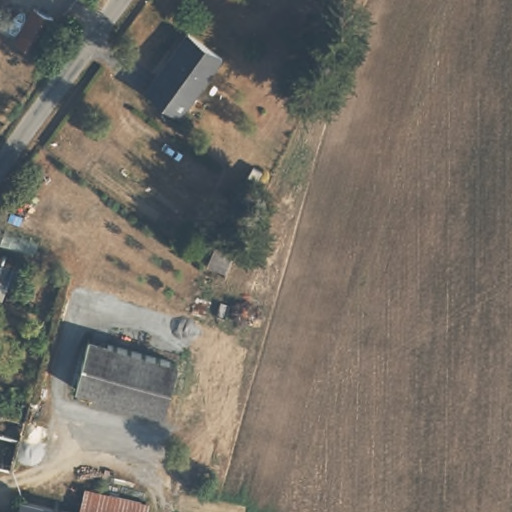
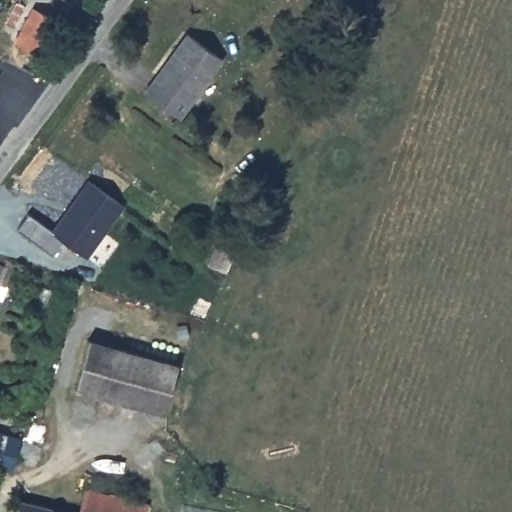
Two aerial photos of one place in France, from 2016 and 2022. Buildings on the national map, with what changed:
unchanged [(31,4),(60,14),(40,54),(13,39),(31,4)]
unchanged [(218,56),(176,115),(143,91),(186,31),(218,56)]
new [(26,213),(51,230),(88,179),(122,204),(85,255),(62,239),(52,255),(16,229),(26,213)]
unchanged [(206,253),(215,235),(236,246),(227,264),(206,253)]
unchanged [(91,338),(180,362),(167,412),(76,388),(91,338)]
unchanged [(89,512),(93,488),(150,501),(148,512),(89,512)]
unchanged [(24,499),(89,512),(22,512),(24,499)]

